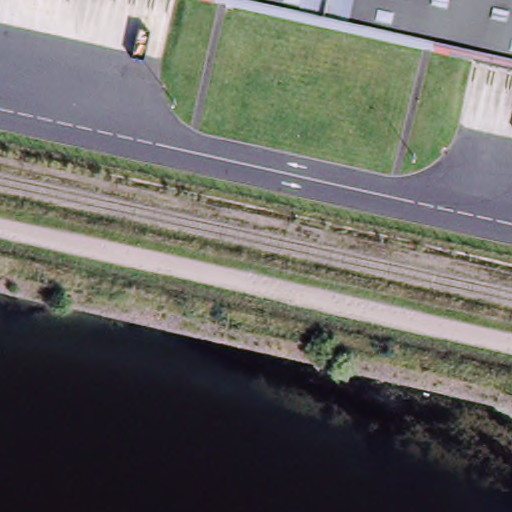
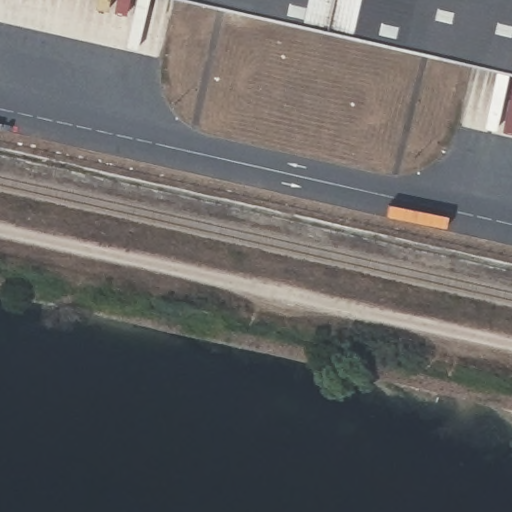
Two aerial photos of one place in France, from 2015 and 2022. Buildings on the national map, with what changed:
unchanged [(200,0),(512,0),(512,71),(200,0)]

